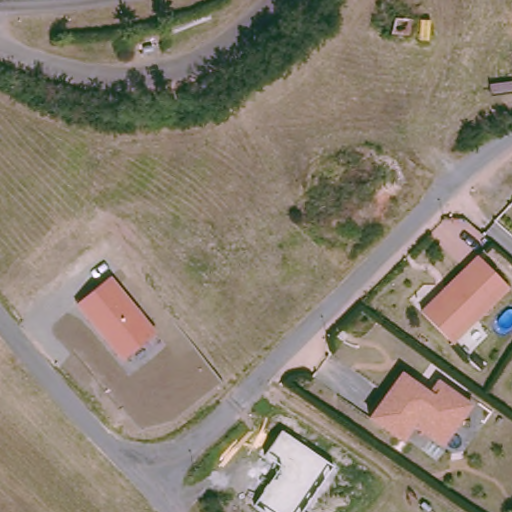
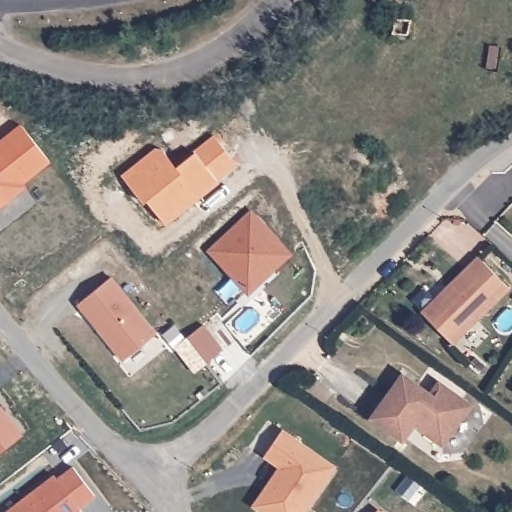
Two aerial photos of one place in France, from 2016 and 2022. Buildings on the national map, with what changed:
new [(0,207),(0,141),(21,124),(51,162),(24,182),(27,186),(0,207)]
new [(155,149),(160,150),(174,168),(213,136),(237,165),(164,224),(145,200),(142,203),(121,177),(155,149)]
new [(292,253),(250,294),(208,251),(251,211),(292,253)]
unchanged [(452,338),(422,307),(438,292),(444,291),(471,265),(469,262),(481,250),(511,281),(452,338)]
unchanged [(120,359),(74,307),(116,275),(158,329),(120,359)]
unchanged [(413,423),(401,439),(368,415),(401,371),(427,390),(438,376),(440,378),(464,396),(472,402),(466,409),(453,428),(441,444),(434,438),(413,423)]
new [(24,434),(0,453),(0,404),(24,434)]
unchanged [(257,504),(282,467),(266,454),(283,428),(336,466),(301,512),(267,512),(257,504)]
new [(8,511),(55,475),(57,478),(73,467),(95,495),(80,509),(82,512),(8,512),(8,511)]
new [(381,509),(384,512),(378,512),(381,509)]

